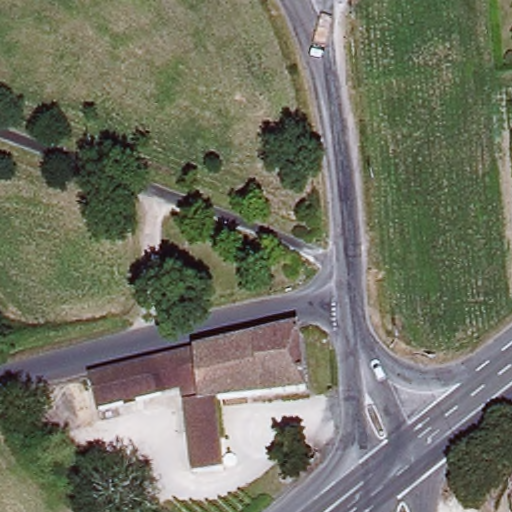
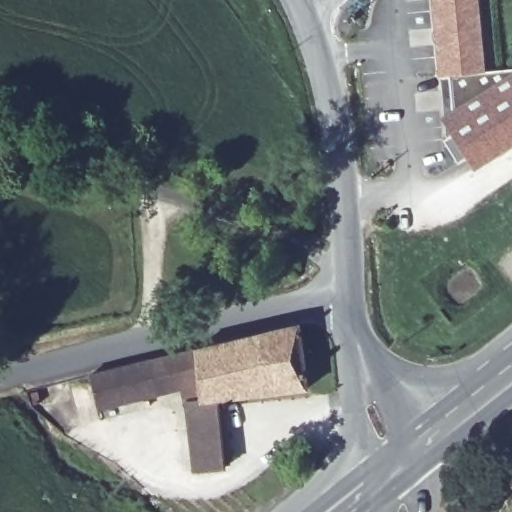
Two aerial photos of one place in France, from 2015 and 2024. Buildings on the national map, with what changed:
new [(483,72),(449,75),(441,76),(434,0),(476,0),(483,72)]
new [(449,75),(483,72),(512,69),(512,145),(498,153),(492,143),(459,163),(444,140),(455,133),(449,75)]
unchanged [(304,392),(215,403),(223,474),(193,478),(186,407),(198,405),(194,372),(168,375),(167,361),(297,330),(304,392)]
unchanged [(150,359),(158,391),(98,406),(91,373),(150,359)]
unchanged [(512,479),(512,507),(508,484),(512,479)]

